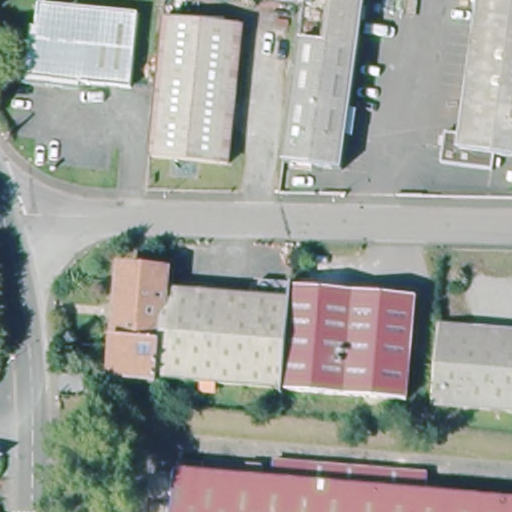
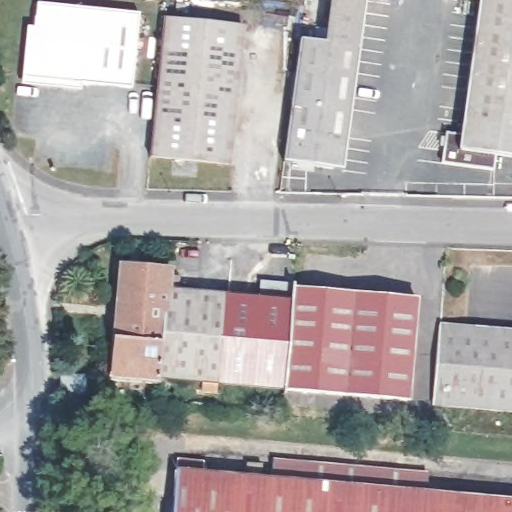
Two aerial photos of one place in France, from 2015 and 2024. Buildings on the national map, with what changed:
unchanged [(359,0),(337,166),(281,159),(302,5),(303,0),(359,0)]
unchanged [(474,0),(512,0),(512,159),(491,155),(489,168),(451,163),(437,160),(442,134),(455,136),(474,0)]
unchanged [(28,5),(130,12),(126,85),(23,78),(28,5)]
unchanged [(237,23),(230,160),(149,156),(158,18),(237,23)]
unchanged [(120,266),(165,270),(164,287),(288,298),(280,391),(109,374),(120,266)]
unchanged [(412,299),(403,403),(280,391),(288,298),(290,286),(412,299)]
unchanged [(435,323),(512,330),(512,413),(427,405),(435,323)]
unchanged [(175,449),(202,449),(202,469),(512,498),(512,512),(171,512),(175,449)]
unchanged [(275,474),(276,458),(427,469),(428,489),(275,474)]

